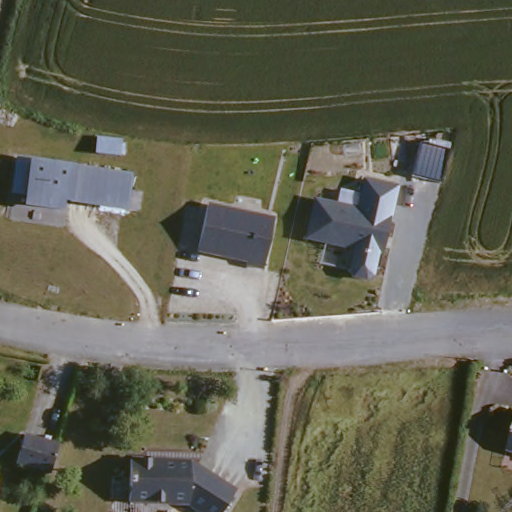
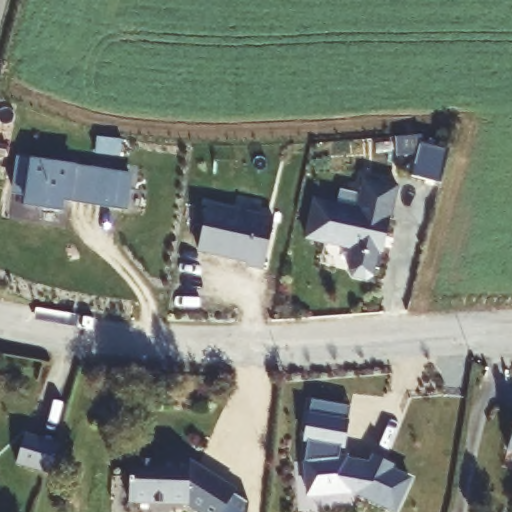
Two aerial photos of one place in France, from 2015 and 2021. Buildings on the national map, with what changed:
new [(419,137),(448,145),(439,179),(410,172),(419,137)]
unchanged [(134,172),(128,211),(64,203),(62,214),(23,208),(24,196),(11,195),(16,155),(134,172)]
unchanged [(316,197),(350,203),(359,175),(404,185),(377,281),(343,276),(347,249),(305,236),(316,197)]
unchanged [(207,203),(275,219),(263,262),(195,246),(207,203)]
new [(311,400),(350,407),(348,422),(344,448),(341,447),(339,458),(347,457),(347,461),(370,464),(373,456),(393,465),(390,470),(410,479),(395,511),(356,493),(351,492),(308,496),(305,461),(308,442),(304,441),(309,415),(311,400)]
unchanged [(21,440),(55,450),(50,466),(46,478),(12,468),(21,440)]
unchanged [(509,448),(512,440),(512,449),(509,448)]
unchanged [(201,512),(185,501),(134,500),(136,458),(190,460),(222,482),(231,489),(217,509),(215,512),(201,512)]

